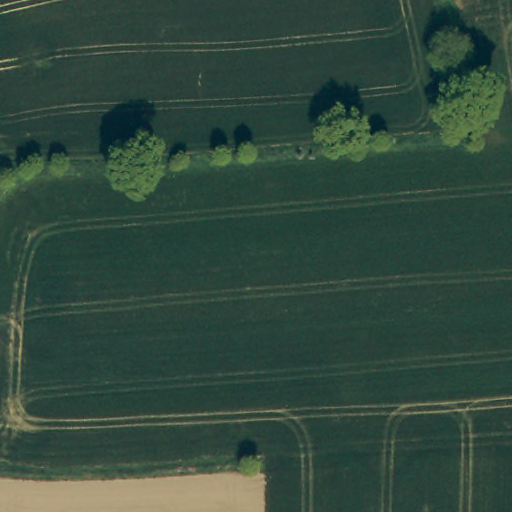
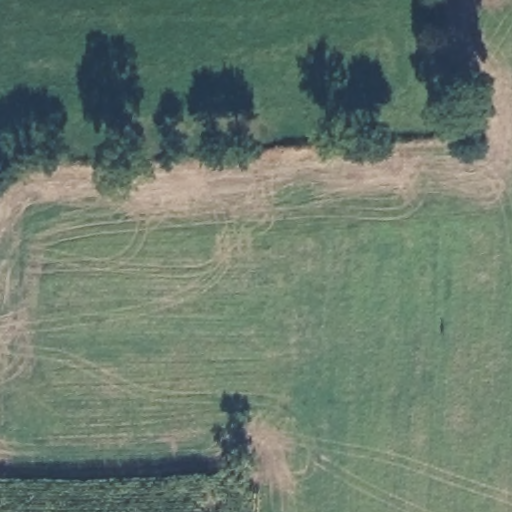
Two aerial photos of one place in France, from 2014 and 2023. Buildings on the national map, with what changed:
[]

